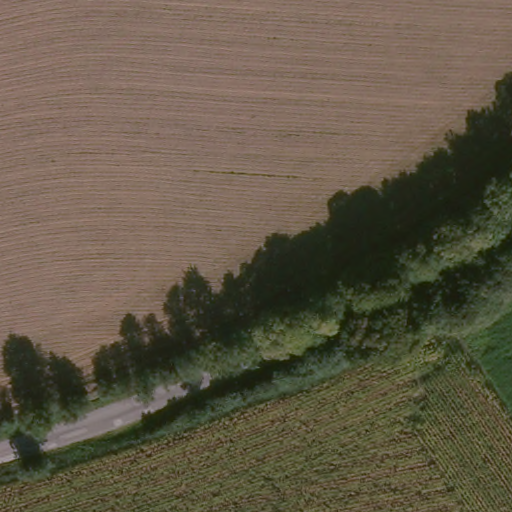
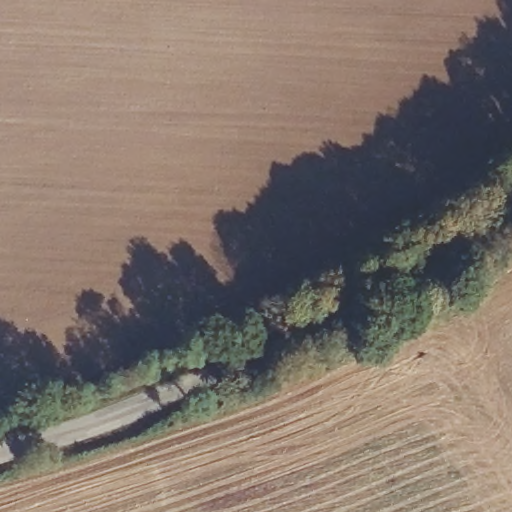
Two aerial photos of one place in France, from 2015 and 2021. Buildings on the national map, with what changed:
[]

